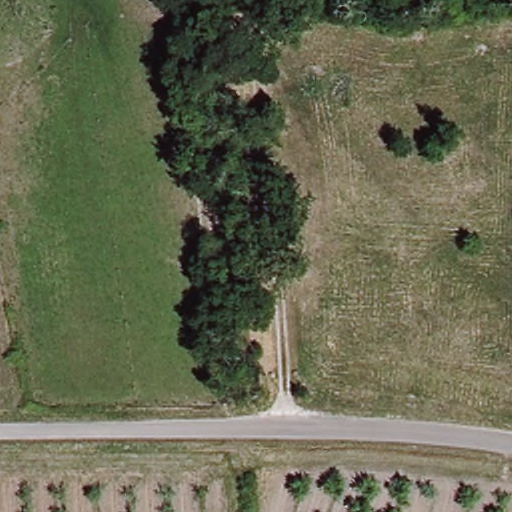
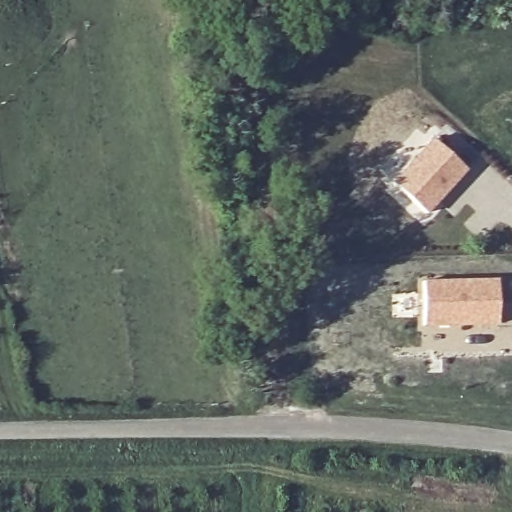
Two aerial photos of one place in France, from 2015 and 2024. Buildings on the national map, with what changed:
new [(431,139),(466,171),(427,213),(392,182),(431,139)]
new [(497,278),(498,325),(424,327),(423,279),(497,278)]

